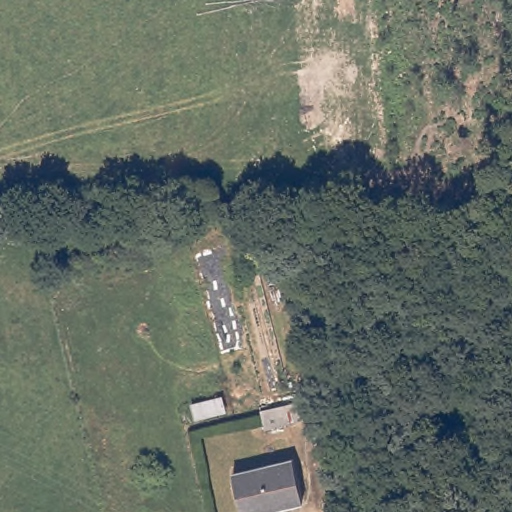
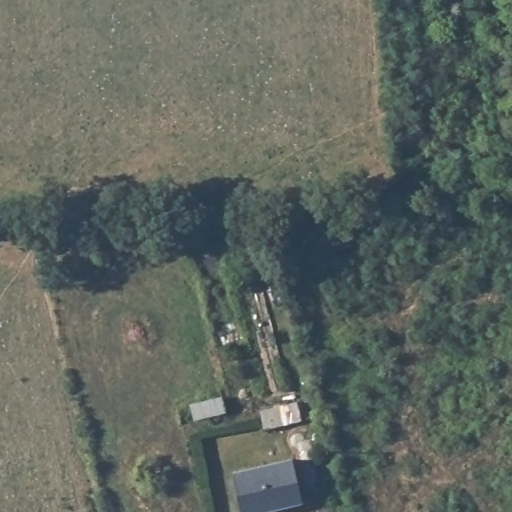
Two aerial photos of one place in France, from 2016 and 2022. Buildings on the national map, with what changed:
unchanged [(260,412),(296,402),(300,421),(265,430),(260,412)]
unchanged [(233,474),(293,461),(302,502),(257,512),(242,512),(233,474)]

